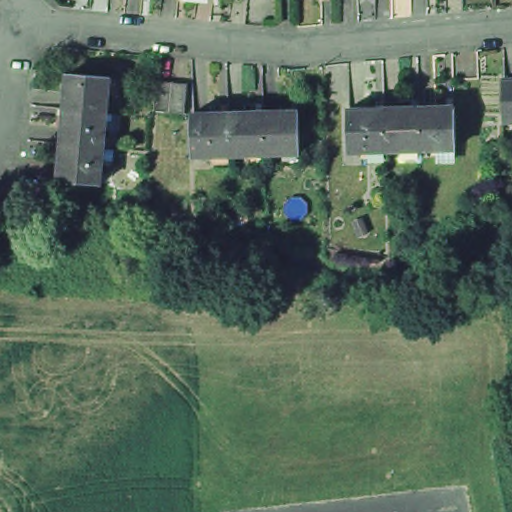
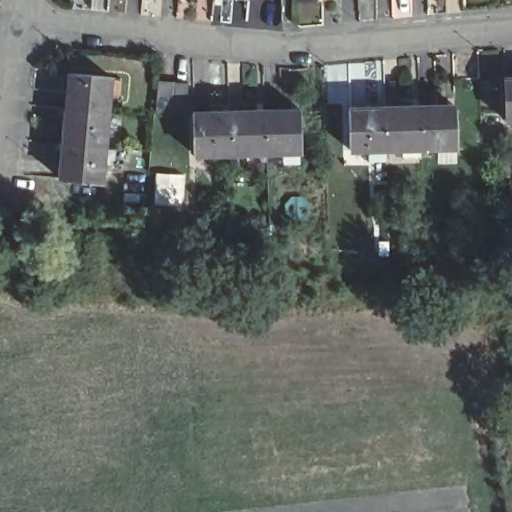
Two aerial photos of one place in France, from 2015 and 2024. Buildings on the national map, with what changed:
unchanged [(71,70),(113,75),(110,111),(68,107),(71,70)]
unchanged [(503,116),(500,75),(512,75),(512,116),(503,116)]
unchanged [(189,82),(187,112),(157,109),(160,78),(189,82)]
unchanged [(421,145),(387,145),(385,104),(420,102),(421,145)]
unchanged [(440,154),(440,144),(421,145),(420,102),(456,102),(457,143),(457,153),(440,154)]
unchanged [(387,145),(351,146),(350,105),(385,104),(387,145)]
unchanged [(110,111),(106,146),(65,142),(68,107),(110,111)]
unchanged [(300,110),(301,151),(266,153),(265,112),(300,110)]
unchanged [(266,153),(230,154),(230,113),(265,112),(266,153)]
unchanged [(230,154),(195,155),(194,115),(230,113),(230,154)]
unchanged [(106,146),(102,180),(61,176),(65,142),(106,146)]

